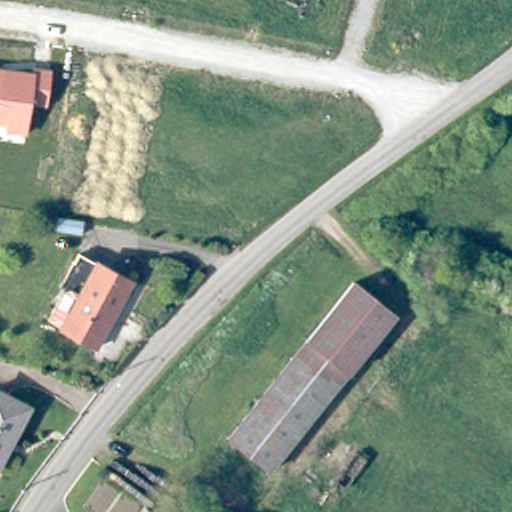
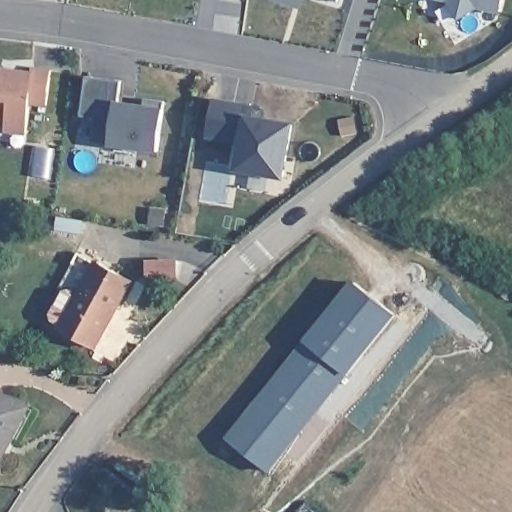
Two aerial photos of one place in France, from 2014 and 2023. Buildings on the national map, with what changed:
new [(336,2),(328,0),(337,0),(336,2)]
new [(497,12),(476,7),(457,19),(445,0),(443,0),(500,0),(497,12)]
unchanged [(51,70),(47,108),(31,105),(27,135),(6,131),(8,125),(0,124),(0,68),(30,71),(31,67),(51,70)]
new [(80,116),(86,77),(119,82),(117,101),(142,104),(143,100),(161,102),(161,107),(156,152),(110,145),(90,141),(93,119),(80,116)]
new [(246,115),(294,123),(285,180),(235,172),(239,145),(206,140),(212,96),(245,102),(246,115)]
unchanged [(103,352),(55,327),(73,291),(68,289),(84,257),(137,284),(103,352)]
unchanged [(398,303),(279,465),(237,433),(357,272),(398,303)]
unchanged [(36,408),(42,411),(13,474),(6,470),(0,467),(0,391),(36,408)]

